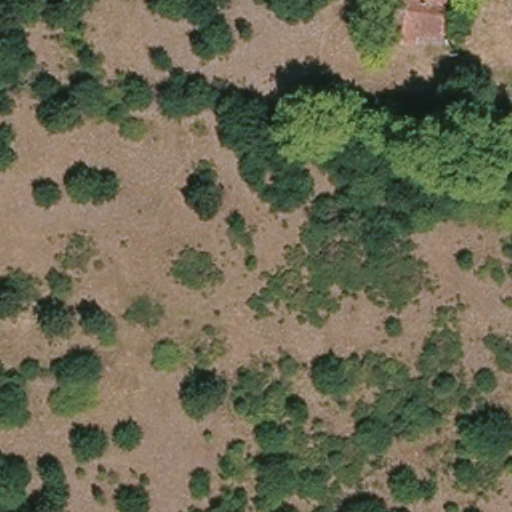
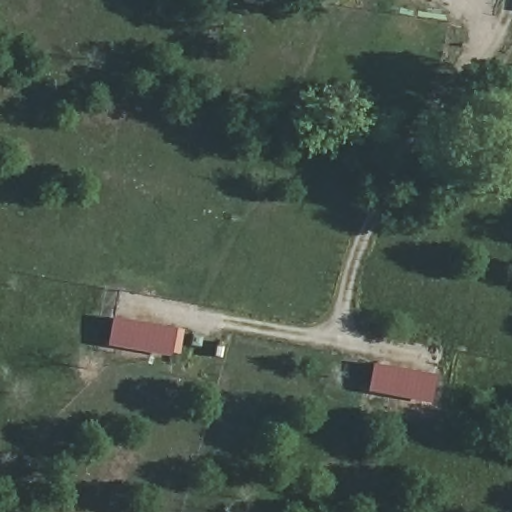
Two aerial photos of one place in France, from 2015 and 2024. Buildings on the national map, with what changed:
demolished [(420,34),(419,44),(398,40),(404,0),(450,0),(445,37),(420,34)]
new [(110,346),(115,318),(184,331),(180,355),(172,355),(172,357),(110,346)]
new [(437,376),(432,404),(367,392),(372,364),(437,376)]

